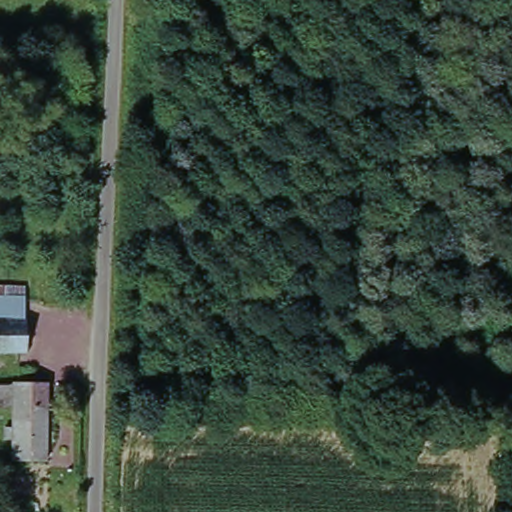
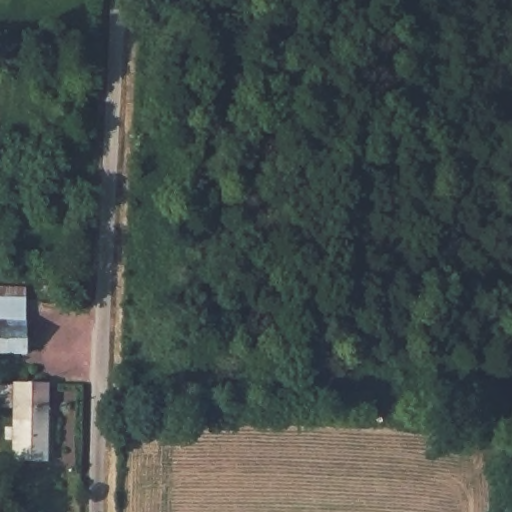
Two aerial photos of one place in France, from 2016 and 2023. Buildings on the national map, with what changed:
unchanged [(24,283),(25,350),(7,351),(7,316),(0,316),(0,283),(24,283)]
unchanged [(7,316),(7,351),(0,351),(0,316),(7,316)]
unchanged [(9,457),(12,382),(42,383),(39,458),(13,457),(9,457)]

